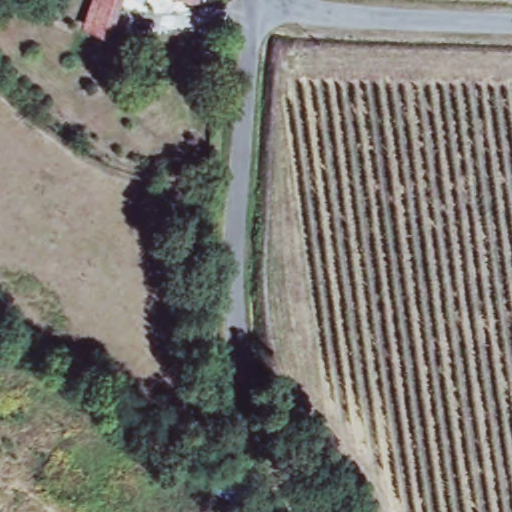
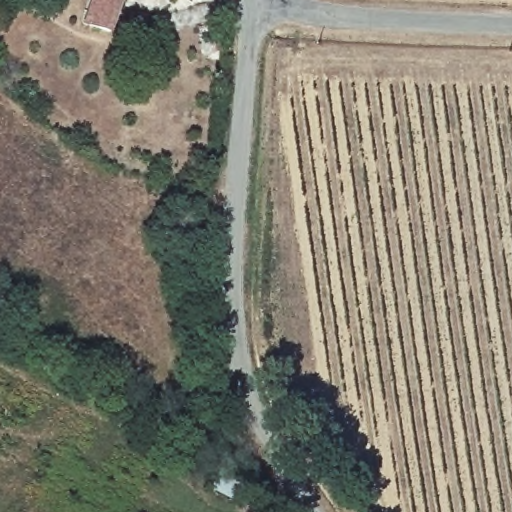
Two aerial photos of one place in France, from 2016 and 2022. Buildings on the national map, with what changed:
unchanged [(87,0),(118,0),(106,32),(79,22),(87,0)]

